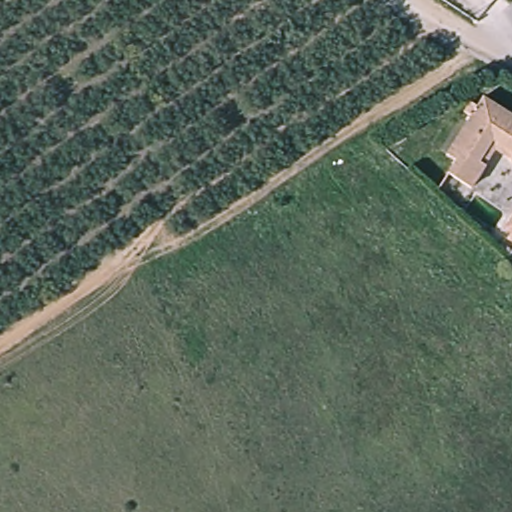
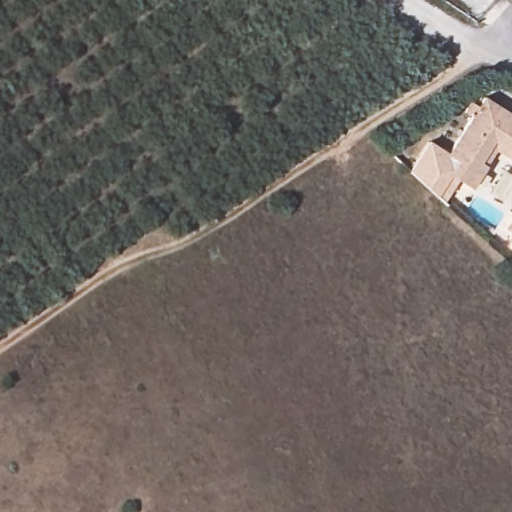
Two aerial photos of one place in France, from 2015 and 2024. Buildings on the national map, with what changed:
unchanged [(493,151),(473,185),(452,172),(460,158),(449,151),(471,115),(465,110),(471,101),(477,105),(483,95),(512,114),(512,163),(493,151)]
new [(460,158),(452,172),(460,177),(445,202),(437,196),(409,171),(429,140),(449,151),(460,158)]
unchanged [(505,236),(512,225),(512,241),(505,236)]

